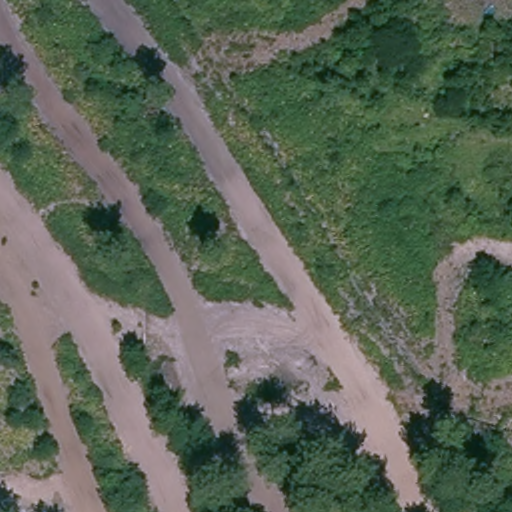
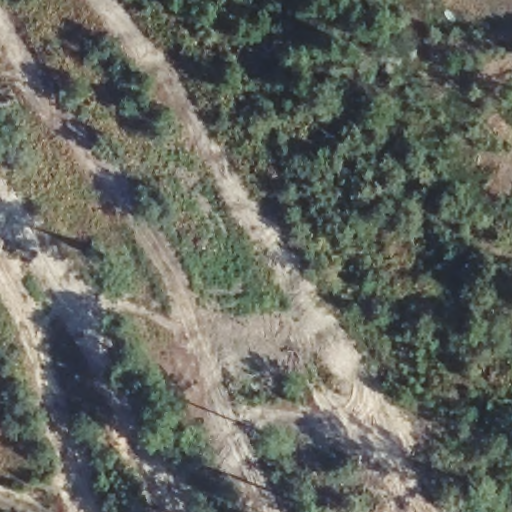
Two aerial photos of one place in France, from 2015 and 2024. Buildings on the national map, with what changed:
[]

